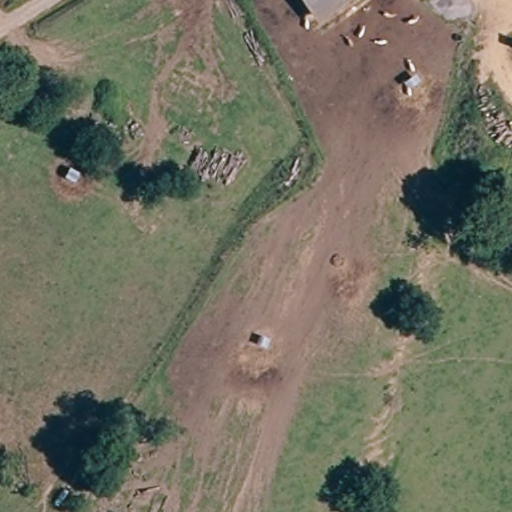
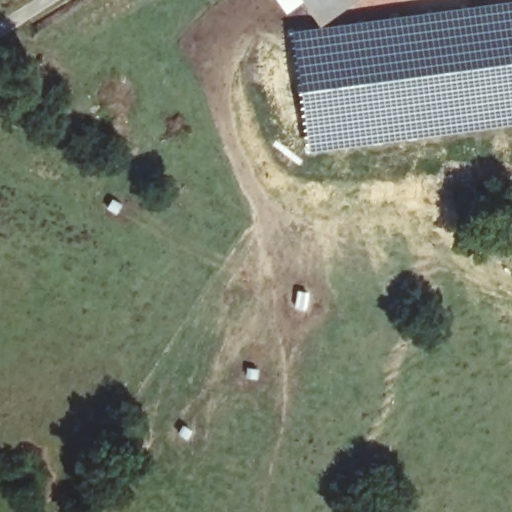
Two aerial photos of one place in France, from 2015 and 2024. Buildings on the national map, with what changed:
unchanged [(291,0),(347,0),(307,25),(291,0)]
new [(512,1),(512,123),(304,150),(289,29),(512,1)]

